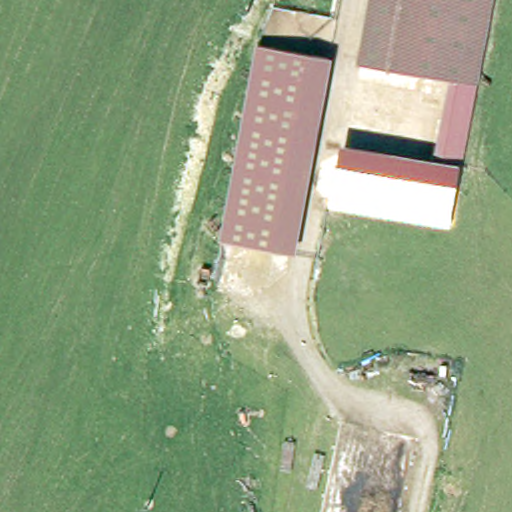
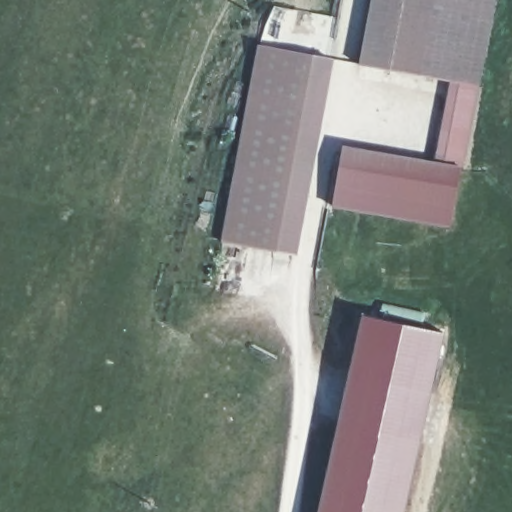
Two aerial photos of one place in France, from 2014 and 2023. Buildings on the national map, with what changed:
unchanged [(447,157),(439,156),(453,75),(362,59),(372,0),(494,0),(480,79),(465,160),(447,157)]
unchanged [(222,243),(257,46),(310,55),(275,252),(222,243)]
unchanged [(330,59),(295,256),(275,252),(310,55),(330,59)]
unchanged [(345,146),(460,166),(449,224),(336,204),(345,146)]
new [(404,512),(317,512),(361,312),(443,330),(404,512)]

